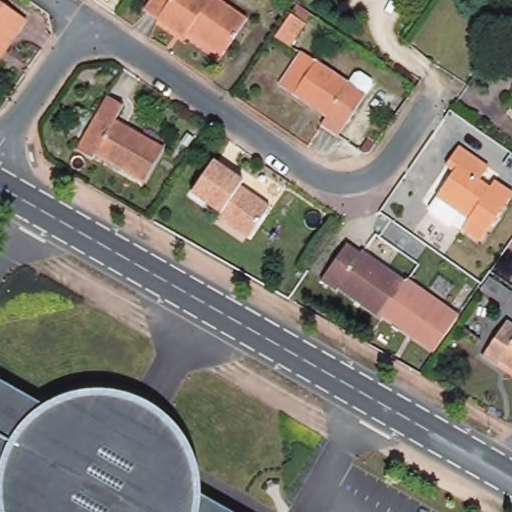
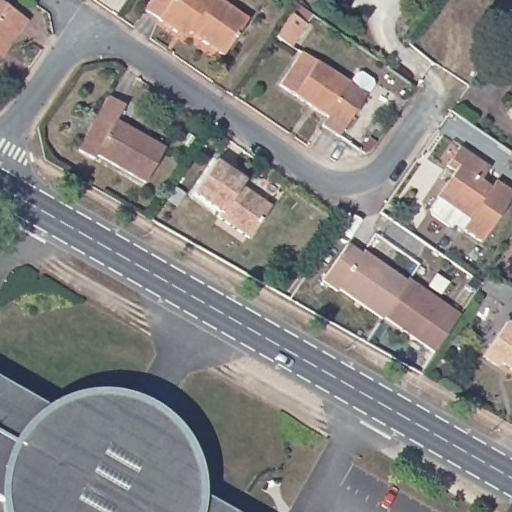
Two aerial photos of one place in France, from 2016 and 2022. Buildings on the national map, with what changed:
unchanged [(172,31),(142,11),(149,0),(216,0),(244,19),(219,55),(186,32),(182,37),(172,31)]
unchanged [(23,21),(14,35),(0,55),(0,5),(23,21)]
unchanged [(277,29),(281,24),(293,5),(307,14),(286,46),(272,37),(277,29)]
unchanged [(333,137),(317,126),(322,117),(276,85),(298,52),(362,96),(333,137)]
unchanged [(142,182),(92,155),(90,160),(72,150),(104,97),(120,106),(112,120),(161,147),(142,182)]
unchanged [(512,107),(512,116),(507,113),(512,107)]
unchanged [(433,197),(451,172),(442,166),(456,147),(486,167),(477,180),(487,187),(492,181),(510,194),(477,242),(458,230),(465,220),(455,212),(433,197)]
unchanged [(245,239),(212,216),(214,212),(189,195),(211,162),(240,182),(236,187),(245,192),(266,207),(245,239)]
unchanged [(334,288),(332,291),(318,281),(343,245),(357,255),(360,252),(402,282),(404,280),(456,316),(431,352),(378,317),(377,318),(334,288)]
unchanged [(486,290),(495,277),(512,289),(512,299),(508,305),(486,290)]
unchanged [(484,357),(508,322),(512,324),(512,371),(502,364),(499,367),(484,357)]
unchanged [(47,411),(51,409),(66,402),(82,397),(98,396),(115,397),(131,402),(147,408),(160,417),(172,430),(182,443),(189,458),(194,475),(195,491),(195,495),(225,512),(5,512),(3,500),(0,498),(0,384),(47,411)]

